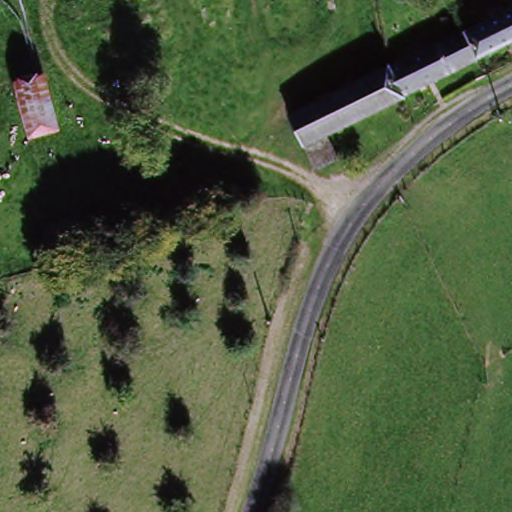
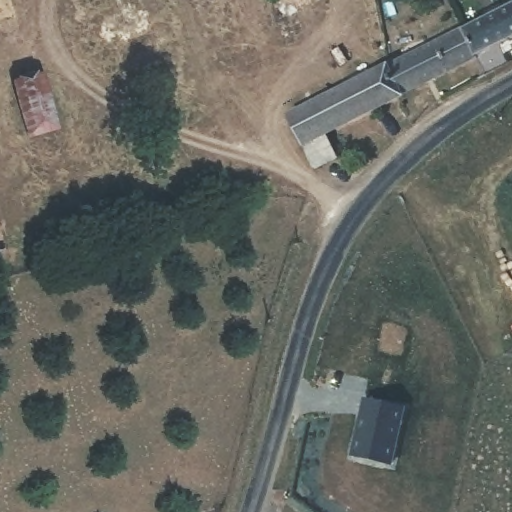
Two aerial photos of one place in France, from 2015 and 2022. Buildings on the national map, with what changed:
unchanged [(512,9),(512,41),(470,62),(457,36),(512,9)]
unchanged [(309,170),(282,121),(432,48),(457,36),(470,62),(396,96),(397,101),(325,136),(336,163),(311,176),(309,170)]
unchanged [(13,84),(43,76),(56,128),(27,135),(13,84)]
new [(404,411),(392,467),(352,458),(364,403),(404,411)]

